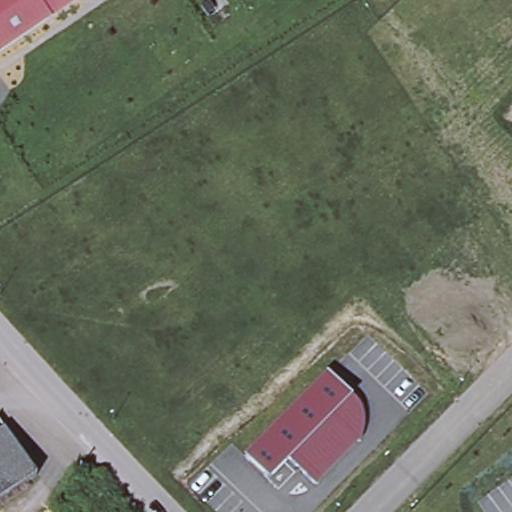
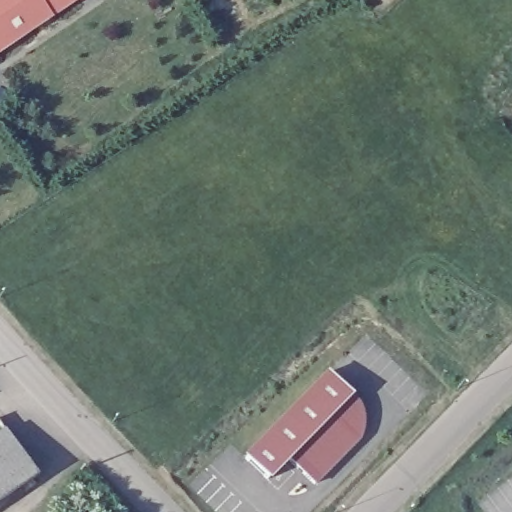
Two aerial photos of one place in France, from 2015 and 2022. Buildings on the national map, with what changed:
unchanged [(39,0),(50,17),(0,51),(0,0),(39,0)]
unchanged [(39,0),(75,0),(50,17),(39,0)]
unchanged [(246,457),(329,372),(352,394),(289,458),(268,479),(246,457)]
unchanged [(352,394),(357,401),(361,408),(363,417),(363,423),(363,424),(362,430),(361,434),(360,437),(358,440),(315,484),(289,458),(352,394)]
unchanged [(37,478),(0,503),(0,434),(5,430),(37,478)]

